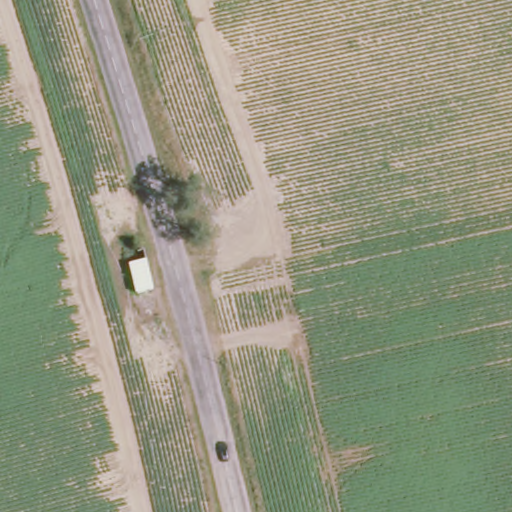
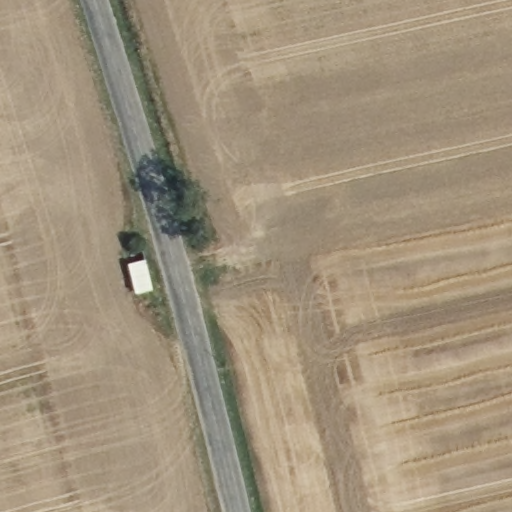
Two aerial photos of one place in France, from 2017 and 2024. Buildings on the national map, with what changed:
unchanged [(129,264),(150,259),(156,290),(135,292),(129,264)]

